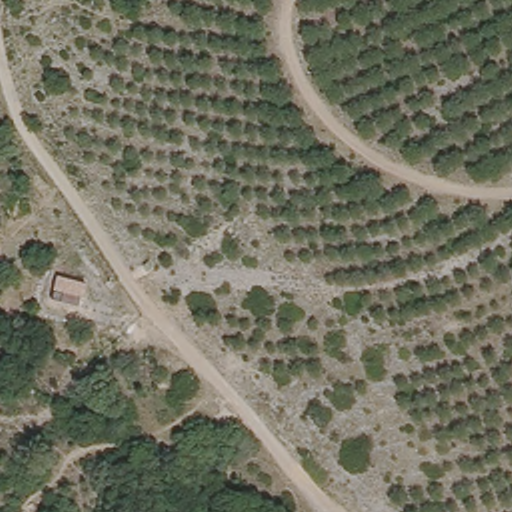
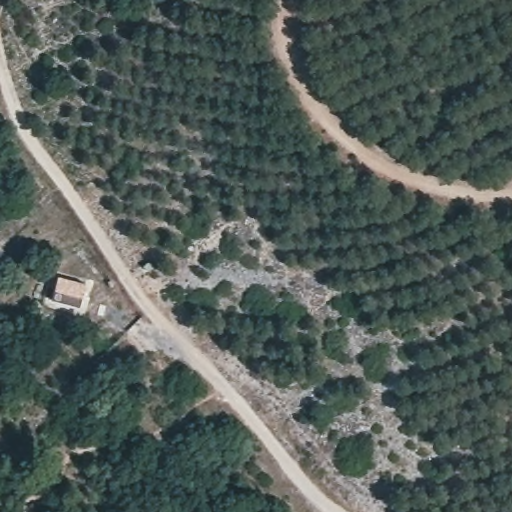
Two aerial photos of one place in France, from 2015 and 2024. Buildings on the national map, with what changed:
unchanged [(55,300),(60,273),(84,280),(79,304),(55,300)]

